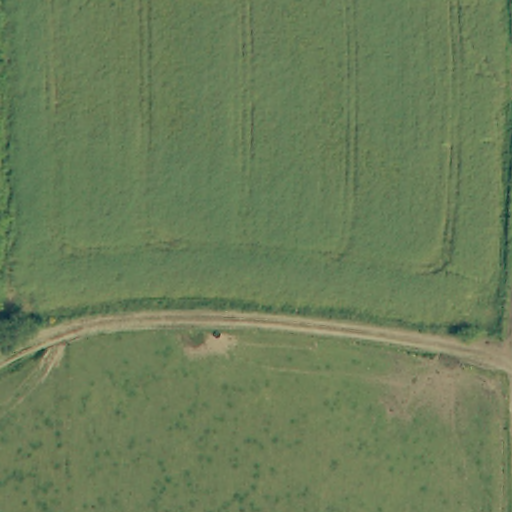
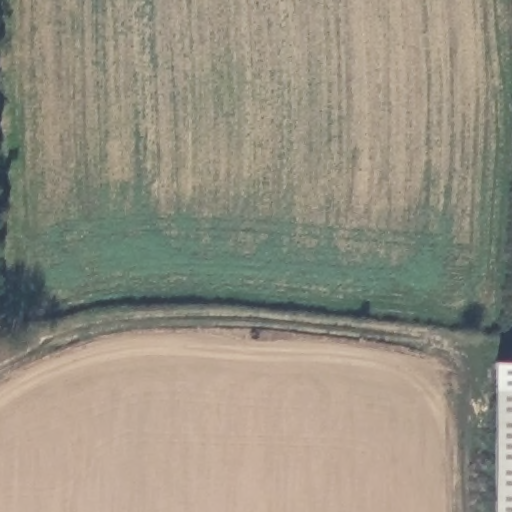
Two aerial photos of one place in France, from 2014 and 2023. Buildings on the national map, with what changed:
new [(495,388),(512,387),(512,512),(494,512),(495,388)]

